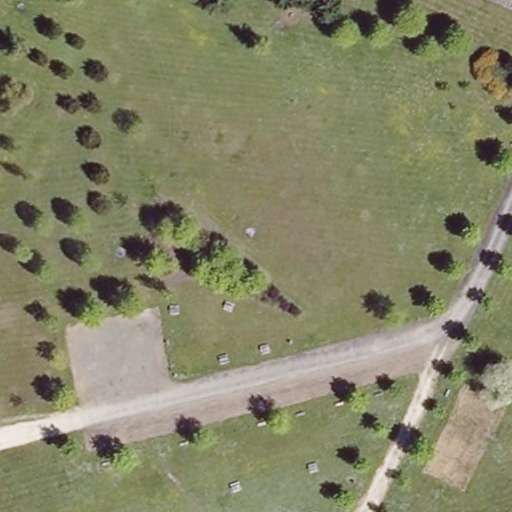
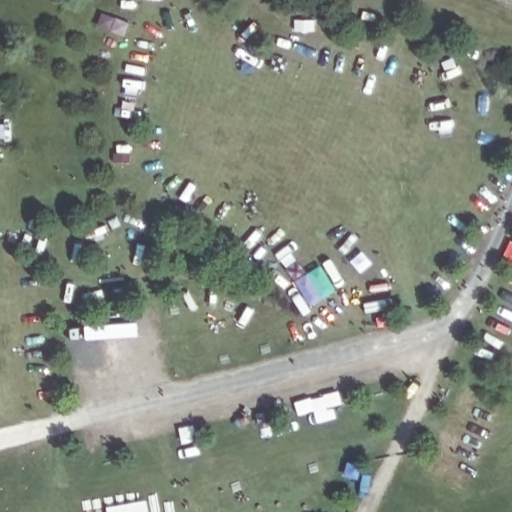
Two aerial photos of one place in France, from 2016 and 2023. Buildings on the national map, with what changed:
[]

